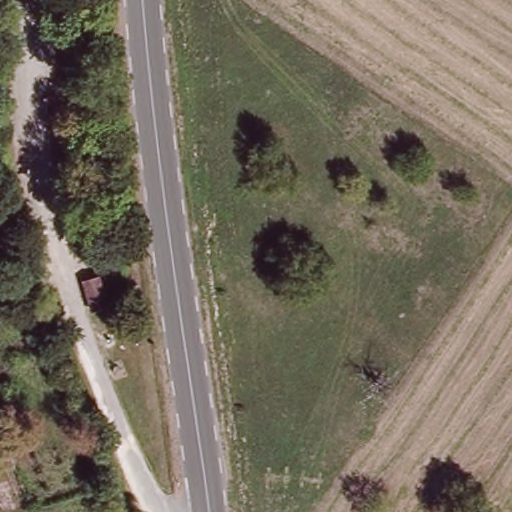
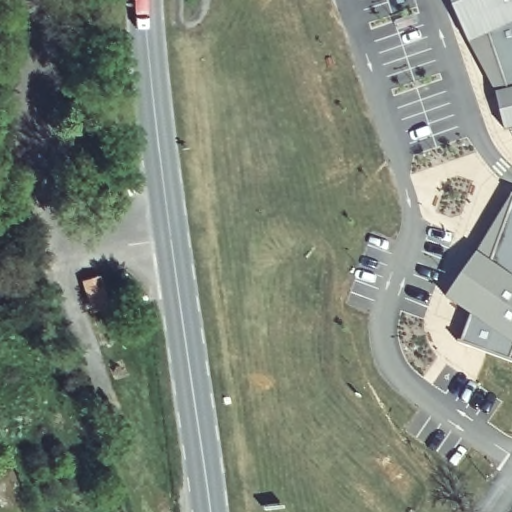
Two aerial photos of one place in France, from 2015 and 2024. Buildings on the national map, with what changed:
new [(482,39),(474,42),(455,0),(512,0),(512,130),(482,39)]
new [(468,345),(479,315),(487,239),(512,195),(512,361),(468,345)]
new [(479,251),(487,239),(479,315),(452,296),(479,251)]
demolished [(92,297),(76,257),(94,254),(96,255),(97,255),(109,290),(92,297)]

